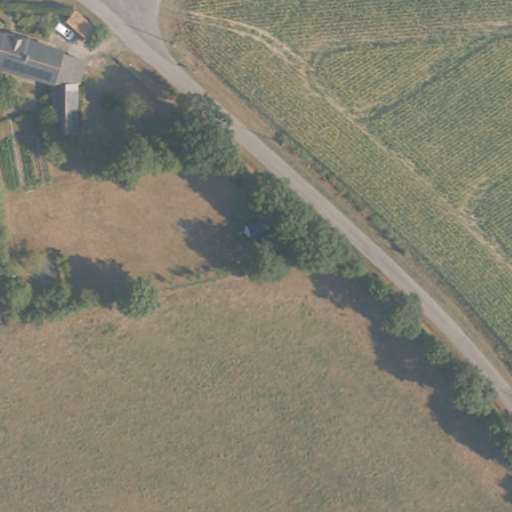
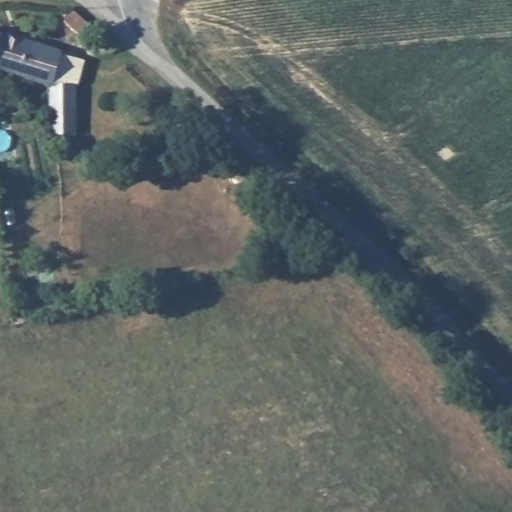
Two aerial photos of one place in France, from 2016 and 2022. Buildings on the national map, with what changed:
unchanged [(96,24),(90,33),(71,16),(79,7),(96,24)]
unchanged [(51,129),(57,80),(0,70),(0,65),(0,28),(9,30),(43,40),(87,59),(77,132),(51,129)]

